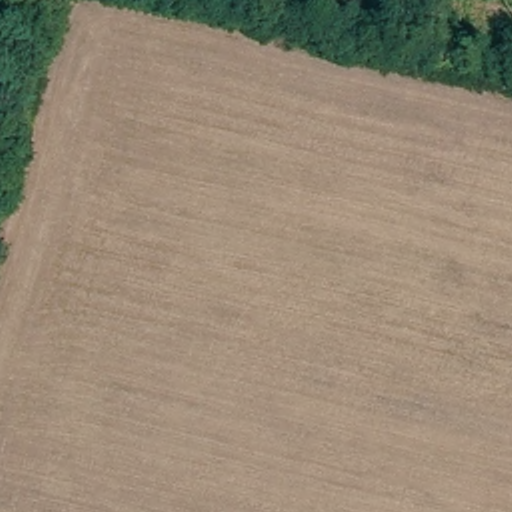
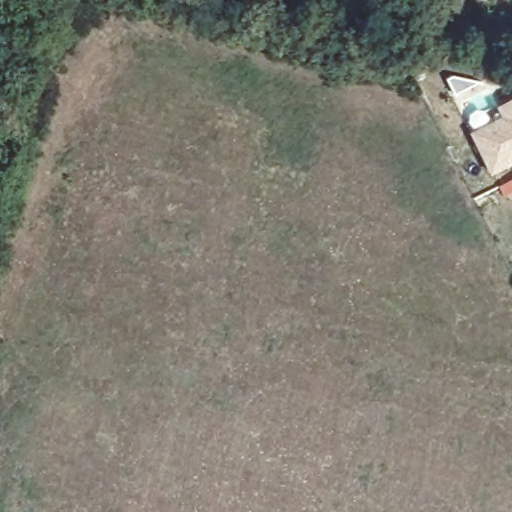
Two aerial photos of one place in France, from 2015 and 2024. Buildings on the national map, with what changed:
new [(494,177),(473,135),(505,119),(500,108),(512,102),(512,168),(494,177)]

